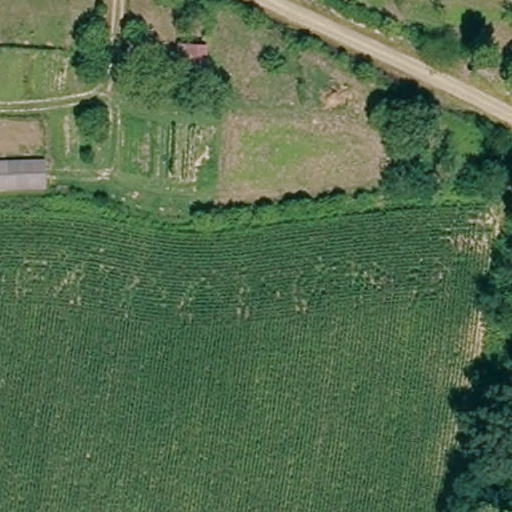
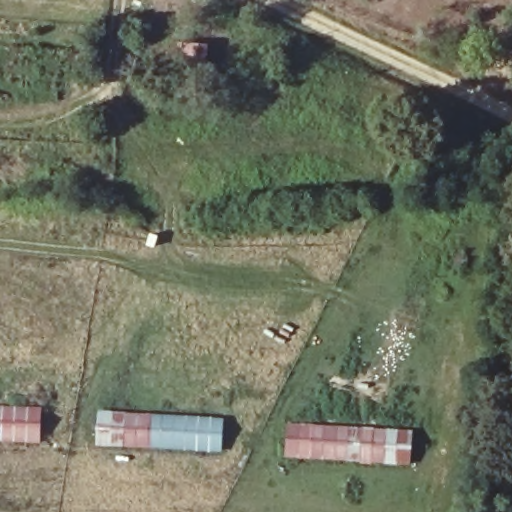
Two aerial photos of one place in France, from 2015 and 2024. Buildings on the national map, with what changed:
unchanged [(0,190),(0,162),(45,161),(46,189),(0,190)]
new [(42,407),(40,443),(0,442),(0,405),(42,407)]
new [(96,409),(224,418),(221,452),(94,446),(96,409)]
new [(286,421),(412,430),(410,466),(283,457),(286,421)]

